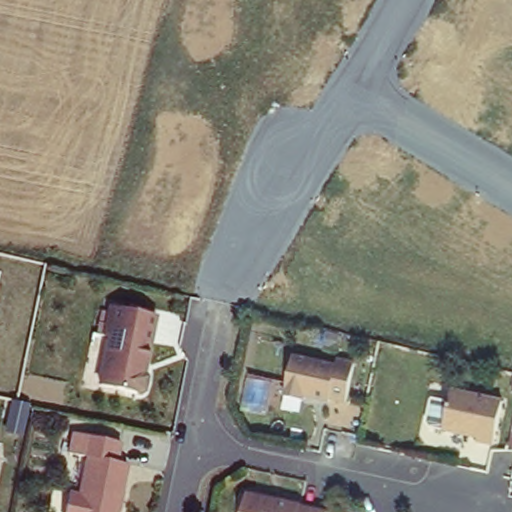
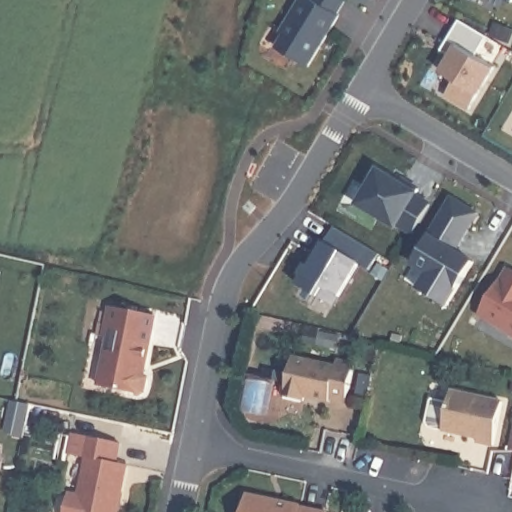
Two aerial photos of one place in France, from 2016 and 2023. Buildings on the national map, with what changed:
new [(302,0),(348,0),(341,11),(343,12),(312,64),(276,42),(302,0)]
new [(499,66),(473,107),(450,93),(459,77),(445,69),(462,42),(499,66)]
new [(402,222),(400,226),(363,203),(373,187),(369,185),(380,167),(404,182),(406,178),(422,188),(419,195),(434,204),(418,231),(402,222)]
new [(451,304),(424,287),(433,271),(417,261),(456,196),(482,211),(459,249),(478,260),(451,304)]
new [(323,295),(302,283),(306,275),(303,273),(310,263),(314,265),(318,259),(314,256),(324,239),(328,241),(338,225),(383,252),(373,268),(362,262),(342,295),(337,304),(323,295)]
new [(463,243),(466,245),(463,251),(459,249),(463,243)]
new [(318,259),(314,265),(310,263),(314,256),(318,259)]
new [(506,279),(512,269),(512,329),(483,312),(504,278),(506,279)]
unchanged [(143,387),(99,377),(111,328),(104,327),(111,297),(161,309),(143,387)]
unchanged [(305,394),(288,390),(297,351),(341,361),(341,357),(357,361),(349,399),(306,389),(305,394)]
unchanged [(496,438),(479,434),(480,431),(445,423),(454,384),(505,395),(496,438)]
unchanged [(72,487),(83,489),(90,451),(84,450),(88,429),(123,436),(119,455),(130,458),(119,512),(67,512),(72,487)]
unchanged [(250,488),(312,502),(312,503),(332,508),(331,512),(245,512),(250,488)]

